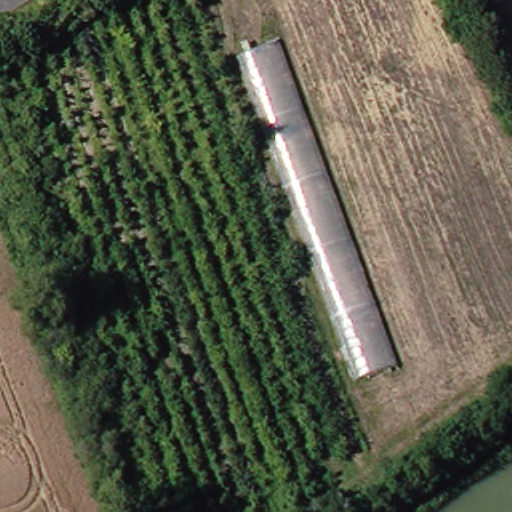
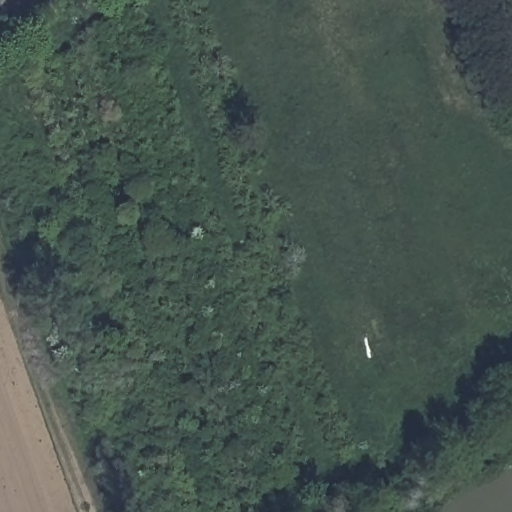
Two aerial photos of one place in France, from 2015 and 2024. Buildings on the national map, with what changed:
demolished [(404,364),(358,380),(239,50),(286,34),(404,364)]

